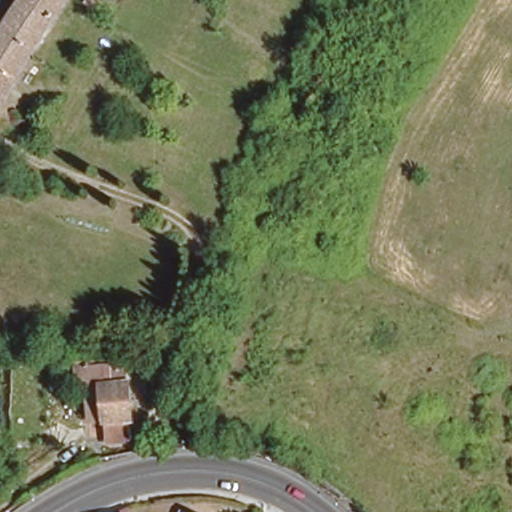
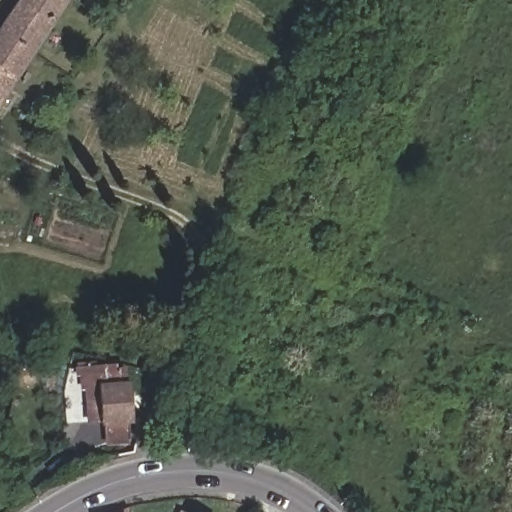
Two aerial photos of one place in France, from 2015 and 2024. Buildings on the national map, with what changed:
unchanged [(13,0),(62,0),(0,96),(0,19),(13,0)]
unchanged [(121,370),(122,372),(141,372),(137,396),(123,397),(122,436),(103,437),(102,422),(84,422),(82,384),(76,383),(76,363),(113,366),(113,370),(121,370)]
unchanged [(193,511),(195,512),(193,512),(193,511)]

